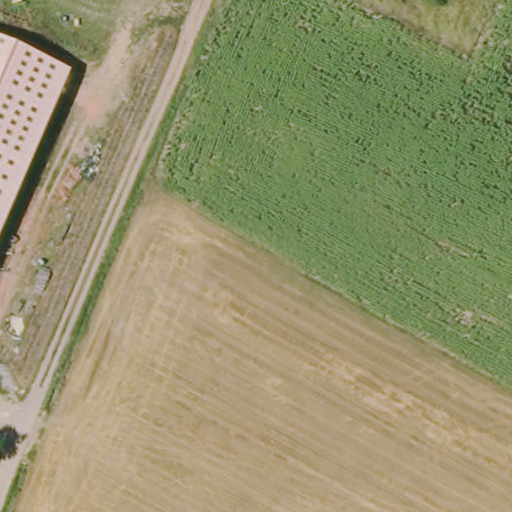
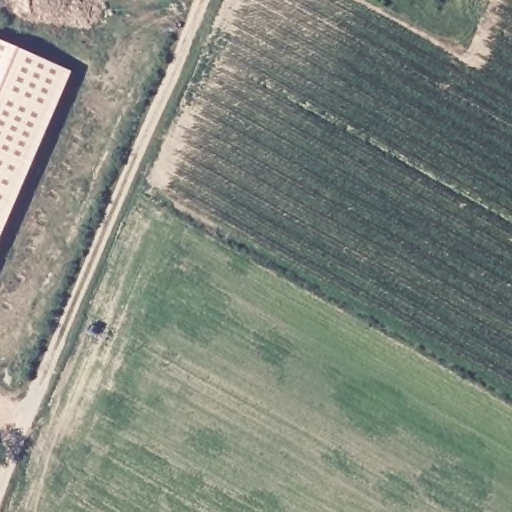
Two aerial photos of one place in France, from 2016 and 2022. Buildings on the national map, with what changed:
unchanged [(0,237),(0,42),(71,72),(0,237)]

